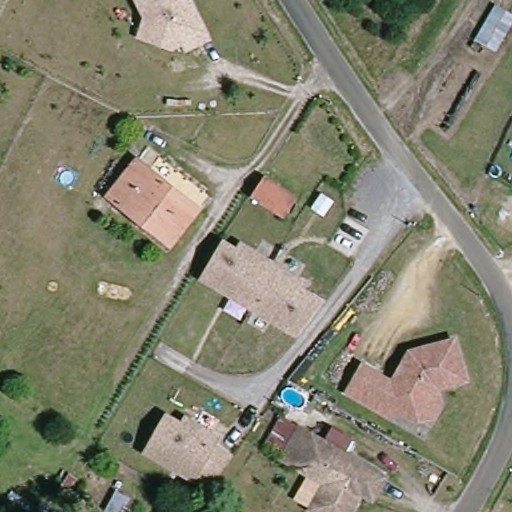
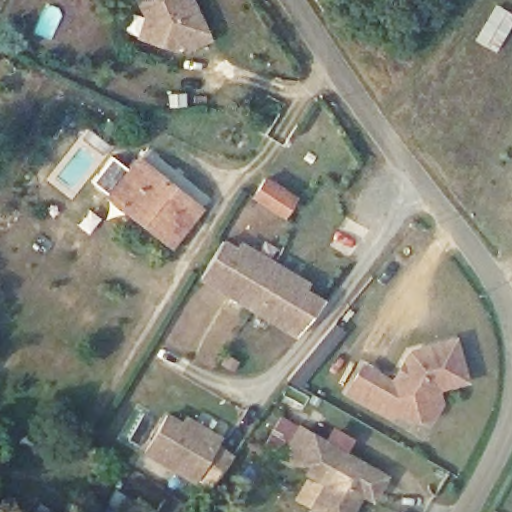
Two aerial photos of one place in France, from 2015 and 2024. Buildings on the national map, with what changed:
unchanged [(169,48),(145,40),(135,36),(143,19),(133,0),(181,0),(186,0),(206,37),(182,50),(176,54),(172,46),(169,48)]
unchanged [(512,22),(496,51),(473,40),(494,2),(512,11),(512,22)]
unchanged [(170,244),(110,196),(137,161),(198,209),(170,244)]
unchanged [(282,217),(252,197),(265,179),(294,197),(282,217)]
unchanged [(302,282),(298,290),(318,302),(292,336),(194,278),(217,240),(232,250),(236,243),(302,282)]
unchanged [(376,405),(347,387),(354,375),(358,368),(363,360),(379,369),(392,376),(394,372),(400,362),(410,346),(454,335),(466,375),(436,383),(441,398),(433,411),(415,415),(402,407),(388,411),(376,405)]
unchanged [(310,471),(324,478),(281,454),(283,450),(263,439),(280,411),(299,422),(324,436),(332,420),(354,433),(345,449),(385,471),(377,485),(372,494),(361,487),(347,512),(324,512),(310,504),(296,496),(310,471)]
unchanged [(232,457),(212,485),(196,473),(193,480),(145,452),(167,415),(182,423),(186,417),(218,437),(214,443),(232,457)]
unchanged [(54,512),(27,512),(2,496),(10,483),(54,512)]

